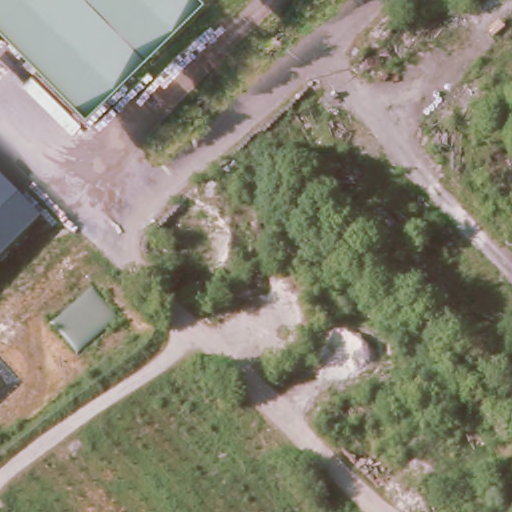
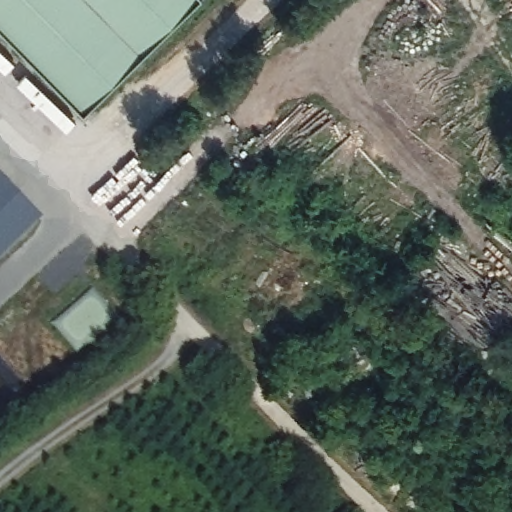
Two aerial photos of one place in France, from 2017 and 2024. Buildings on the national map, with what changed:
unchanged [(0,24),(0,0),(199,0),(85,111),(0,24)]
unchanged [(0,255),(0,176),(39,214),(0,255)]

